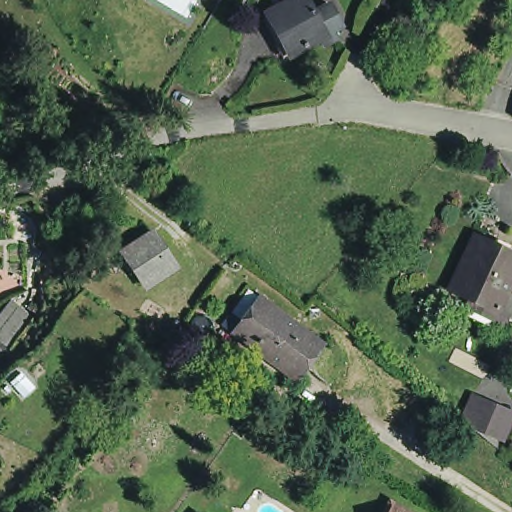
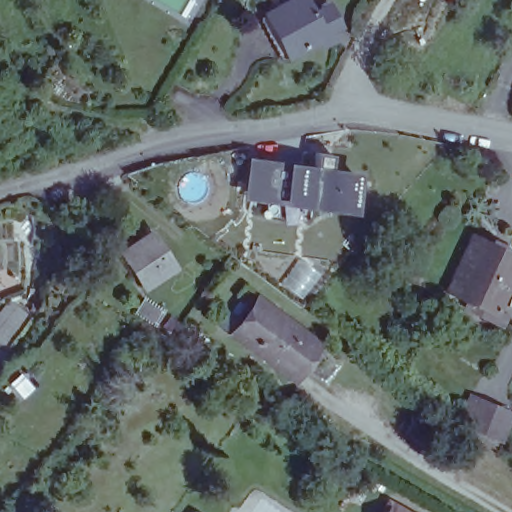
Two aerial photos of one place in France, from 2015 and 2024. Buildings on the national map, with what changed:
unchanged [(289,0),(299,0),(306,14),(324,4),(335,26),(325,31),(329,39),(316,46),(312,40),(285,54),(264,14),(289,0)]
new [(362,167),(360,210),(312,205),(310,222),(265,217),(267,200),(245,198),(248,155),(362,167)]
unchanged [(119,248),(130,241),(147,229),(169,260),(162,264),(140,279),(119,248)]
unchanged [(472,234),(512,253),(512,275),(487,328),(460,314),(467,301),(445,291),(472,234)]
unchanged [(260,356),(230,334),(240,319),(258,295),(264,300),(284,315),(320,342),(292,380),(265,359),(260,356)]
unchanged [(10,353),(0,343),(0,315),(12,302),(35,323),(10,353)]
unchanged [(487,431),(475,427),(487,401),(498,406),(500,407),(490,433),(487,431)]
unchanged [(387,497),(419,512),(378,512),(387,497)]

